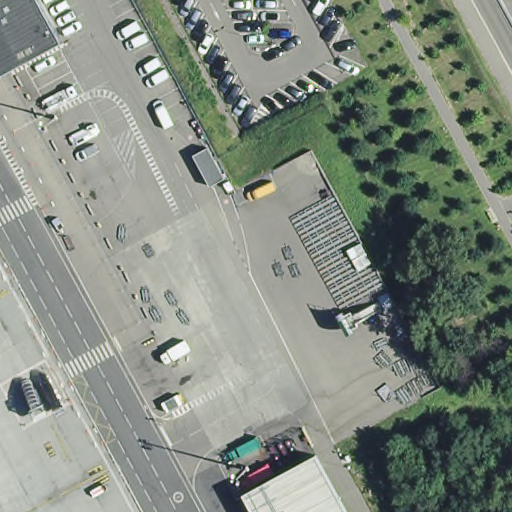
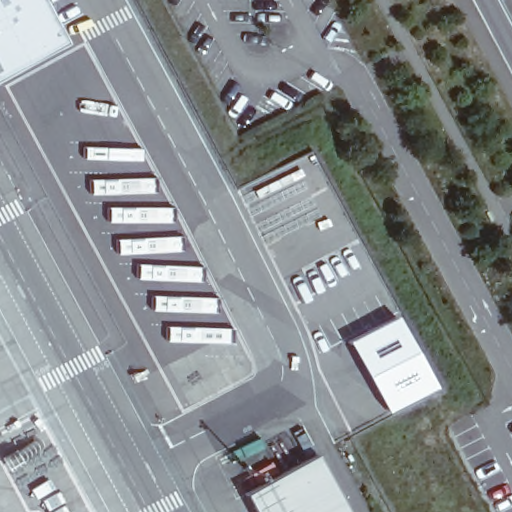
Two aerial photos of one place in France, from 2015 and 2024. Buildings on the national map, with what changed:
unchanged [(0,75),(0,0),(38,0),(60,43),(0,75)]
demolished [(192,144),(205,141),(224,178),(210,182),(192,144)]
new [(440,390),(392,415),(351,343),(400,316),(440,390)]
unchanged [(349,512),(256,512),(245,491),(317,453),(349,512)]

